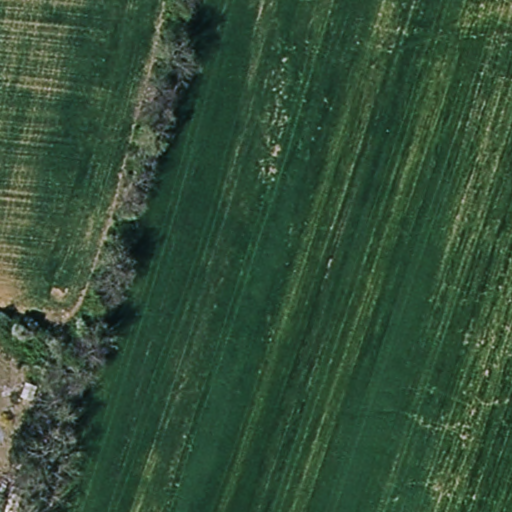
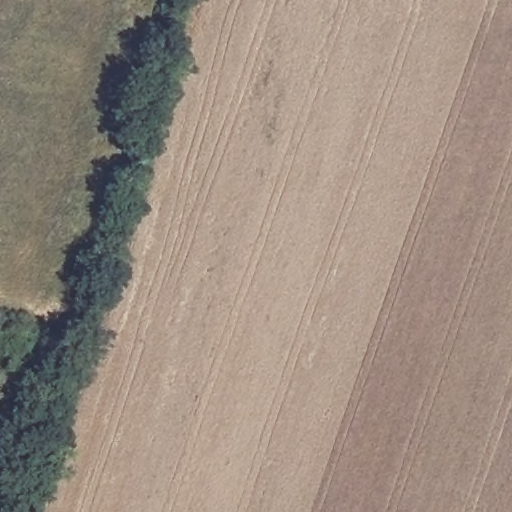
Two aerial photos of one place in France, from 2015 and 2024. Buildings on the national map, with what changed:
[]

